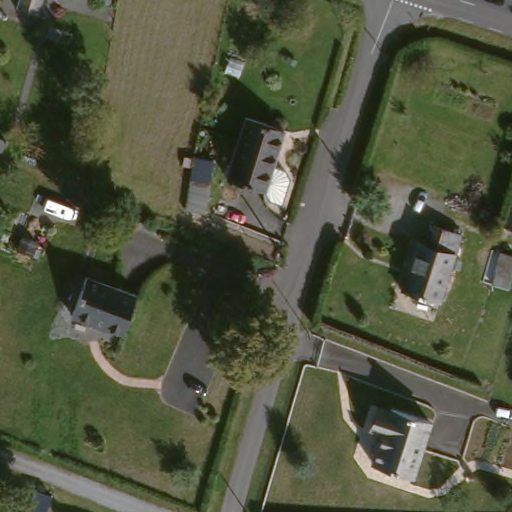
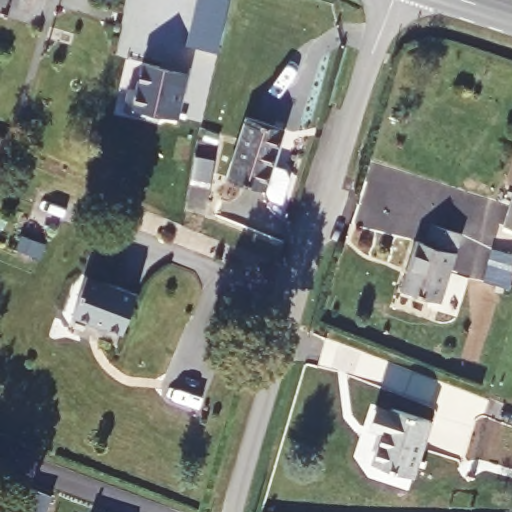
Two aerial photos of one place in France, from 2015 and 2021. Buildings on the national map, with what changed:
unchanged [(12,9),(15,0),(38,0),(33,16),(12,9)]
new [(219,52),(185,46),(196,0),(231,0),(219,52)]
new [(190,71),(179,119),(159,113),(158,119),(122,110),(128,87),(136,90),(142,61),(178,68),(180,62),(191,64),(190,71)]
unchanged [(267,191),(231,180),(251,120),(287,132),(267,191)]
unchanged [(7,151),(0,148),(0,137),(11,141),(7,151)]
unchanged [(509,226),(512,217),(512,227),(509,226)]
unchanged [(453,238),(432,304),(395,291),(410,243),(418,246),(425,228),(453,238)]
unchanged [(500,271),(508,251),(512,252),(512,275),(500,271)]
unchanged [(136,298),(122,337),(104,329),(102,332),(72,320),(88,278),(136,298)]
unchanged [(387,411),(390,408),(428,422),(410,476),(371,462),(380,436),(371,432),(378,409),(387,411)]

